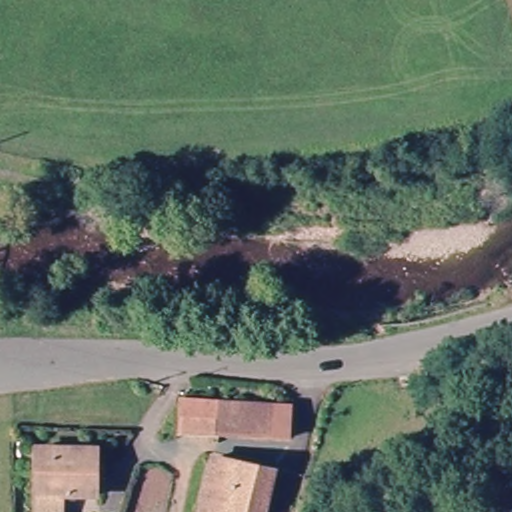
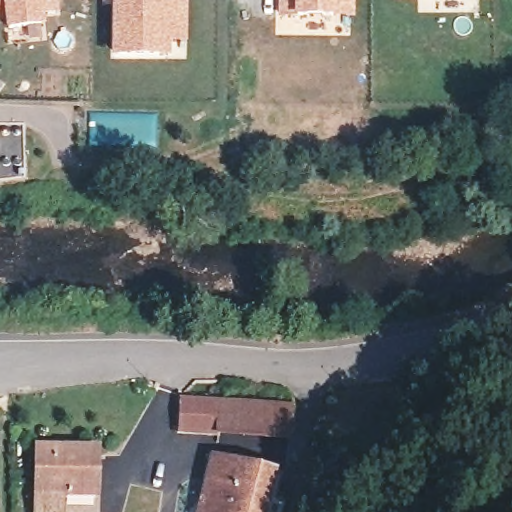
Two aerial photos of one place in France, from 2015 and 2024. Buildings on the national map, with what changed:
new [(44,15),(44,27),(3,29),(1,19),(0,19),(0,0),(57,0),(58,12),(44,15)]
new [(186,0),(185,43),(169,43),(169,57),(109,56),(109,5),(101,5),(101,0),(186,0)]
new [(354,0),(354,16),(276,15),(276,0),(354,0)]
unchanged [(217,435),(178,431),(183,397),(219,400),(217,435)]
unchanged [(288,438),(217,435),(219,400),(290,406),(288,438)]
unchanged [(41,500),(46,456),(99,456),(98,499),(68,500),(66,512),(40,512),(41,500)]
unchanged [(208,497),(215,460),(277,471),(268,512),(205,512),(208,497)]

